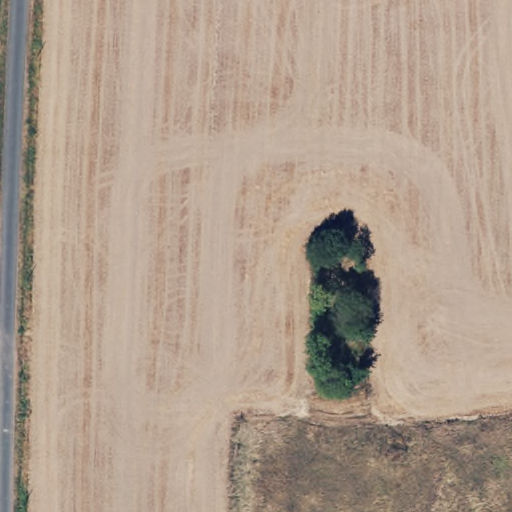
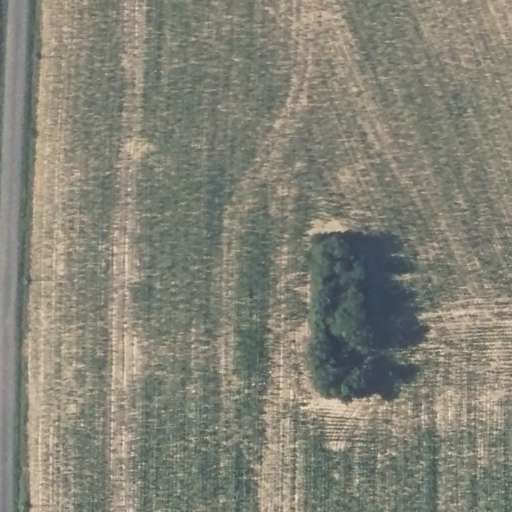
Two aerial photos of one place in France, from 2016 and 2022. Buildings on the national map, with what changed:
[]

